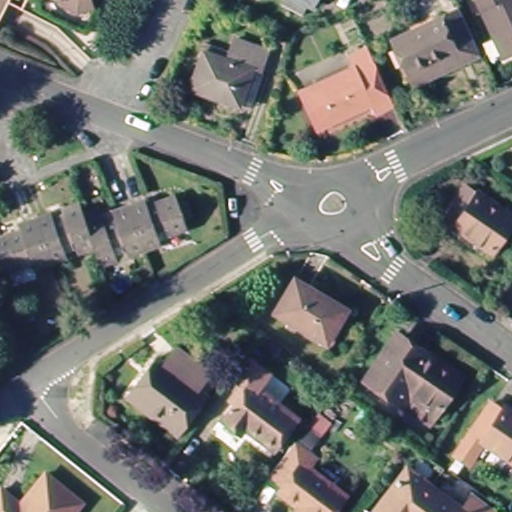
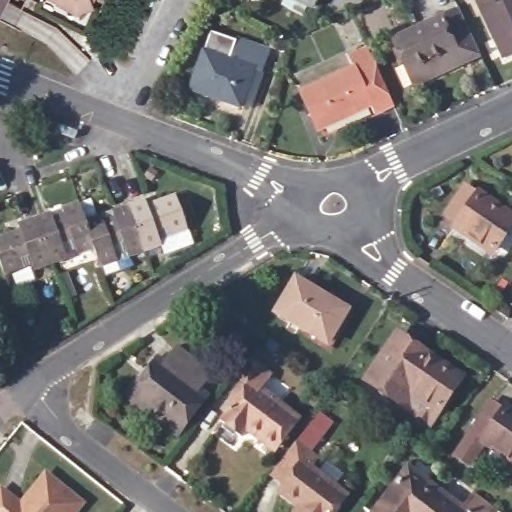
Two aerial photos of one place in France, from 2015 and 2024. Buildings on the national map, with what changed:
unchanged [(89,6),(54,16),(34,5),(37,0),(92,0),(89,6)]
unchanged [(310,5),(300,0),(313,0),(310,5)]
unchanged [(479,0),(506,0),(507,2),(512,1),(512,57),(505,60),(479,0)]
unchanged [(406,75),(390,39),(458,8),(480,57),(432,78),(412,88),(406,75)]
unchanged [(204,48),(230,59),(239,37),(270,51),(261,72),(268,75),(251,114),(187,86),(204,48)]
unchanged [(376,111),(373,103),(324,126),(307,90),(373,59),(375,64),(393,102),(376,111)]
unchanged [(453,232),(457,225),(446,217),(453,206),(463,189),(512,221),(512,230),(510,232),(493,258),(453,232)]
unchanged [(0,259),(0,239),(20,233),(19,226),(51,216),(52,221),(65,217),(64,210),(80,205),(85,222),(101,217),(104,225),(115,222),(112,214),(147,203),(149,208),(176,200),(187,237),(161,245),(164,252),(130,263),(127,256),(117,259),(119,266),(99,272),(93,254),(80,258),(79,253),(65,257),(66,264),(35,273),(34,266),(5,275),(0,259)]
unchanged [(305,283),(332,302),(328,307),(350,322),(329,351),(280,316),(305,283)]
unchanged [(417,415),(365,375),(397,332),(441,366),(445,361),(461,373),(437,405),(425,421),(417,415)]
unchanged [(131,393),(155,360),(165,367),(176,350),(211,375),(198,394),(205,399),(177,437),(142,412),(126,400),(131,393)]
unchanged [(238,356),(260,373),(249,386),(284,414),(258,447),(234,428),(230,434),(206,416),(230,387),(220,379),(238,356)]
unchanged [(512,473),(479,450),(466,469),(452,460),(486,410),(512,427),(512,473)]
unchanged [(320,465),(311,476),(347,504),(342,512),(297,512),(284,502),(290,493),(275,481),(300,450),(320,465)]
unchanged [(408,464),(460,503),(470,490),(477,496),(498,512),(372,512),(379,503),(408,464)]
unchanged [(22,505),(47,473),(84,501),(75,512),(0,512),(0,493),(2,490),(22,505)]

